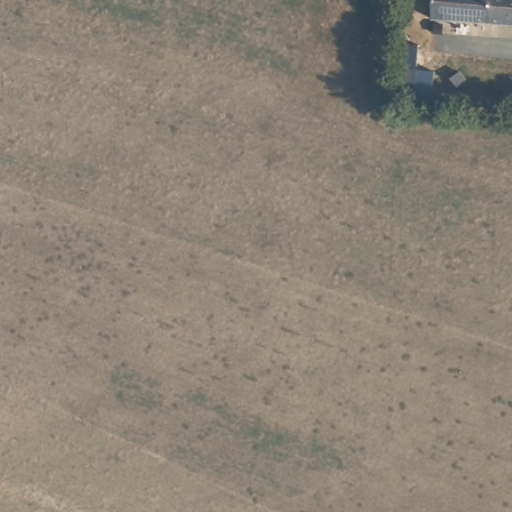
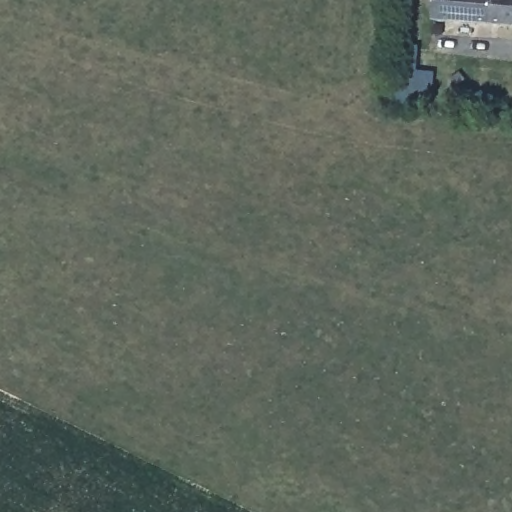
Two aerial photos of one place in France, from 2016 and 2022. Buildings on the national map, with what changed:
unchanged [(433,18),(434,0),(512,0),(512,23),(433,18)]

